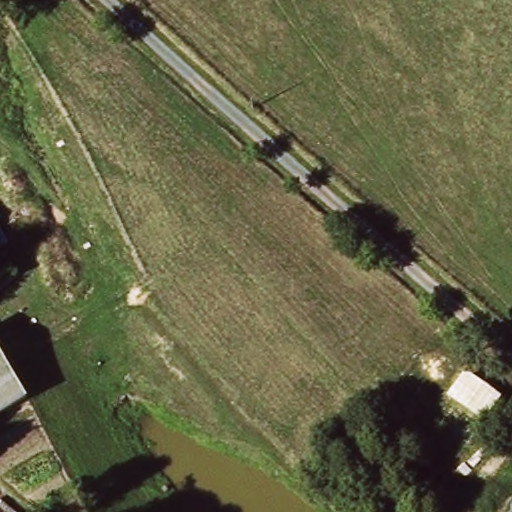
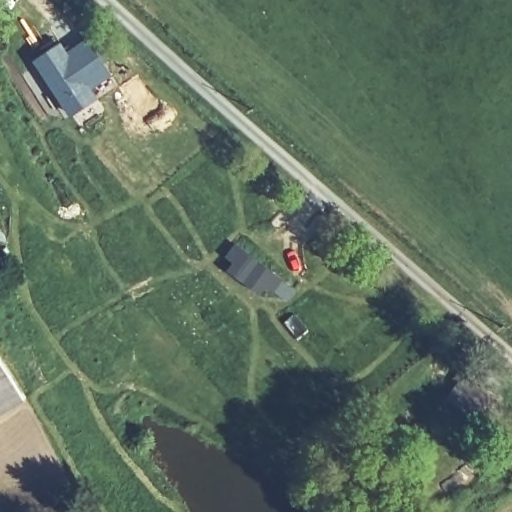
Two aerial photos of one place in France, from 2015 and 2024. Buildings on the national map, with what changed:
new [(62,39),(68,49),(89,35),(113,76),(93,89),(99,98),(68,117),(32,59),(62,39)]
unchanged [(0,412),(0,331),(35,392),(0,412)]
unchanged [(502,399),(483,424),(448,400),(465,374),(502,399)]

